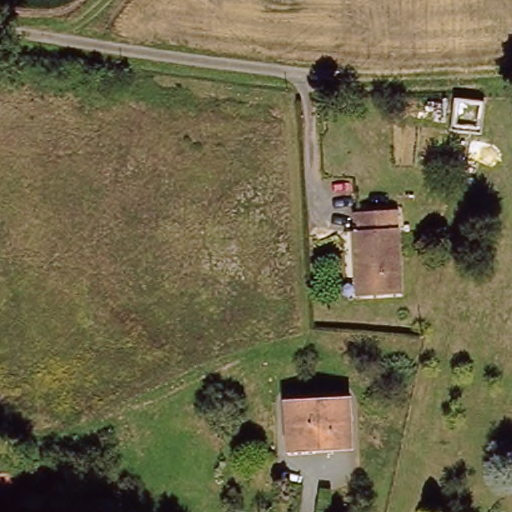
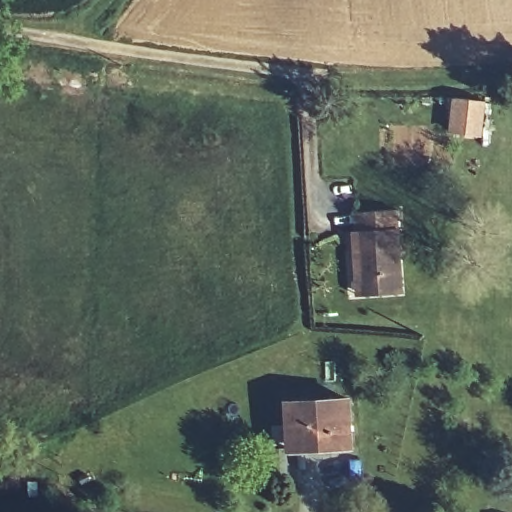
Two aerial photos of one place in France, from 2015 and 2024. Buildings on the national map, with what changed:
new [(459,96),(488,100),(484,132),(454,127),(459,96)]
unchanged [(354,267),(352,230),(357,230),(356,213),(392,210),(398,294),(363,297),(354,298),(354,267)]
unchanged [(347,398),(350,444),(288,448),(284,402),(347,398)]
unchanged [(8,472),(8,486),(0,486),(0,472),(8,472)]

